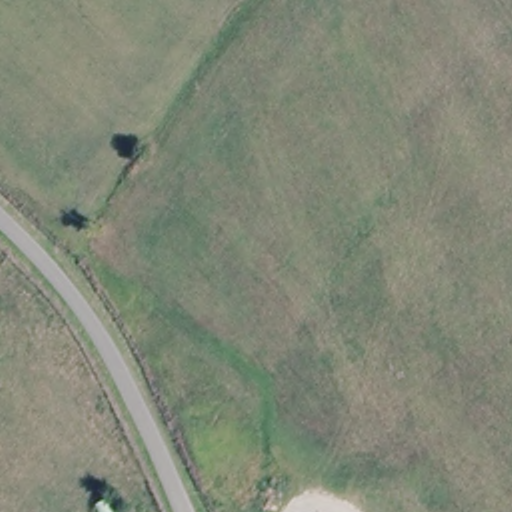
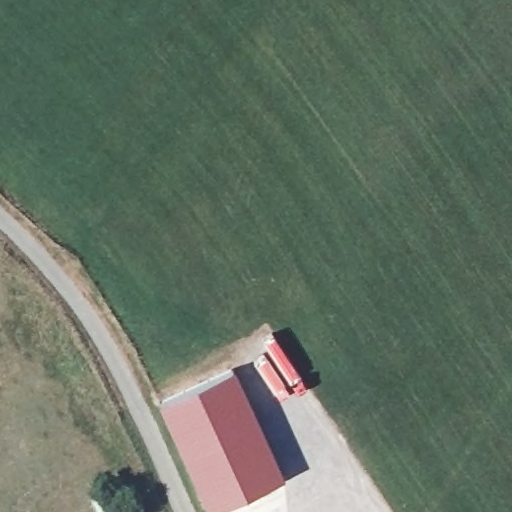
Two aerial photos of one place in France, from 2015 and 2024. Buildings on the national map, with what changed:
new [(235,367),(284,476),(209,511),(158,401),(235,367)]

